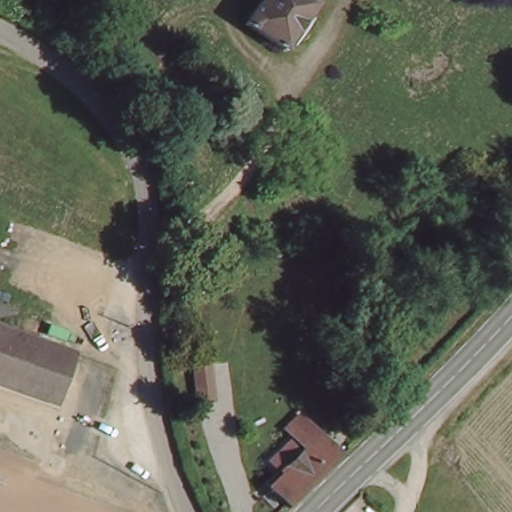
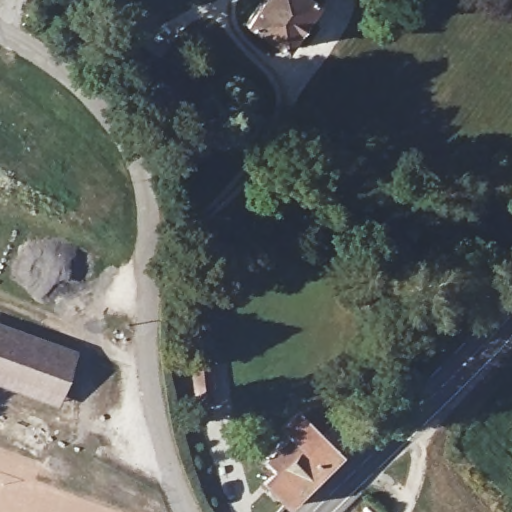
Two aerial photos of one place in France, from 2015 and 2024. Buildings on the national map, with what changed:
unchanged [(319,9),(292,52),(252,26),(268,0),(304,0),(319,9)]
unchanged [(168,52),(151,72),(129,55),(147,34),(168,52)]
unchanged [(77,353),(62,393),(0,371),(0,326),(77,353)]
unchanged [(203,409),(200,371),(220,369),(222,407),(203,409)]
unchanged [(62,393),(59,403),(0,382),(0,371),(62,393)]
unchanged [(291,512),(287,509),(271,495),(286,482),(284,480),(275,471),(300,447),(292,438),(306,424),(324,441),(344,463),(294,512),(291,512)]

